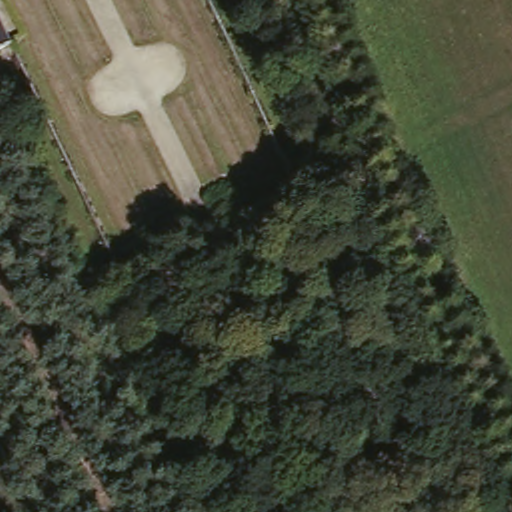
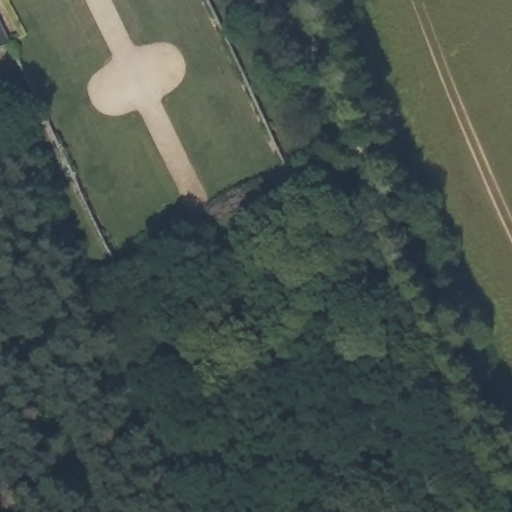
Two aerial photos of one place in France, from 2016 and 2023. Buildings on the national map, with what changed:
unchanged [(0,50),(0,12),(15,43),(0,50)]

